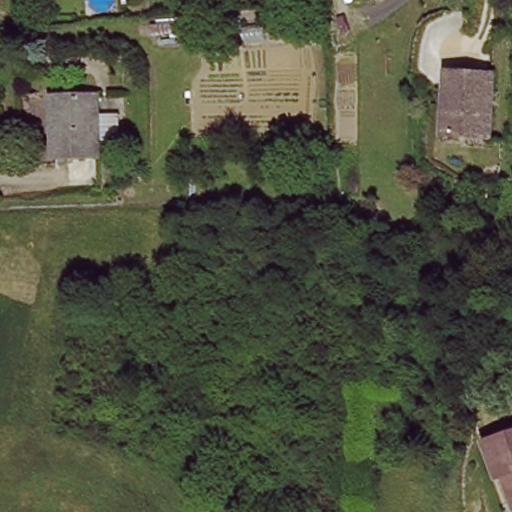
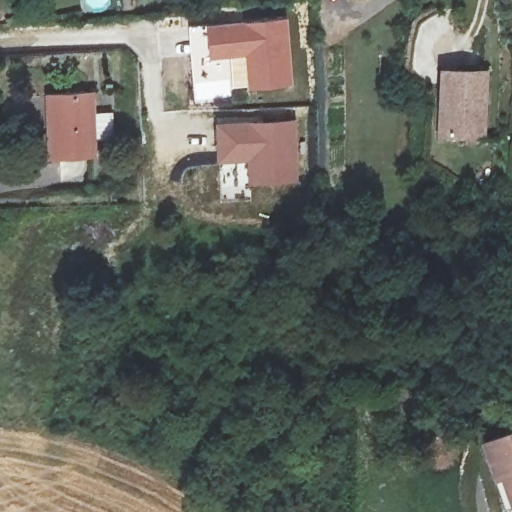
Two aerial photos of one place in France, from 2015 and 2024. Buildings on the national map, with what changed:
new [(288,17),(293,85),(247,89),(246,85),(230,86),(227,56),(208,57),(205,23),(288,17)]
unchanged [(490,79),(488,87),(480,142),(437,134),(444,91),(447,70),(490,79)]
unchanged [(53,160),(51,155),(48,95),(89,92),(95,155),(72,157),(53,160)]
new [(298,118),(299,184),(248,185),(246,161),(216,162),(215,121),(298,118)]
unchanged [(504,477),(493,480),(484,446),(512,437),(512,502),(504,477)]

